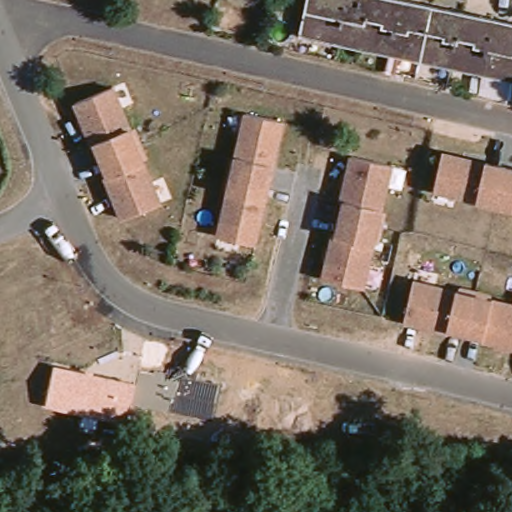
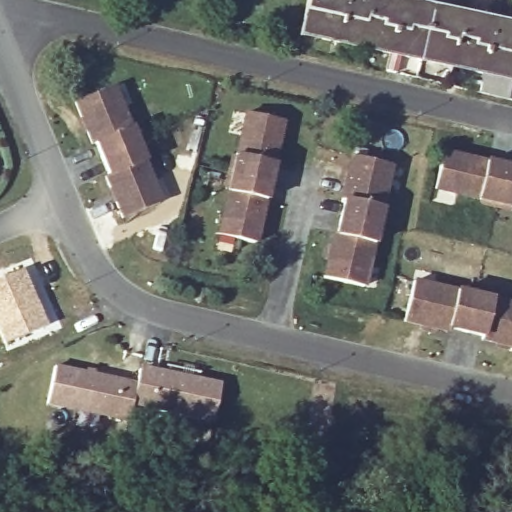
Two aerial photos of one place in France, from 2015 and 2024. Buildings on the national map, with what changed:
unchanged [(303,0),(343,0),(333,44),(296,36),(303,0)]
unchanged [(333,44),(343,0),(366,0),(355,49),(333,44)]
unchanged [(355,49),(366,0),(389,0),(396,1),(385,55),(355,49)]
unchanged [(396,1),(426,8),(415,61),(385,55),(396,1)]
unchanged [(415,61),(426,8),(458,15),(447,67),(415,61)]
unchanged [(478,74),(447,67),(458,15),(489,20),(478,74)]
unchanged [(489,20),(512,25),(512,80),(478,74),(489,20)]
unchanged [(97,139),(94,140),(77,99),(114,83),(138,140),(104,155),(97,139)]
unchanged [(246,110),(277,116),(283,118),(277,144),(269,179),(233,170),(246,110)]
unchanged [(107,172),(110,170),(104,155),(138,140),(162,197),(124,212),(107,172)]
unchanged [(433,185),(440,155),(441,150),(470,155),(503,163),(495,199),(433,185)]
unchanged [(378,223),(341,214),(345,197),(341,196),(352,152),(392,162),(378,223)]
unchanged [(512,203),(495,199),(503,163),(512,165),(512,203)]
unchanged [(250,237),(219,230),(233,170),(269,179),(262,212),(255,239),(250,237)]
unchanged [(362,282),(323,273),(334,230),(337,230),(341,214),(378,223),(362,282)]
new [(24,269),(50,323),(5,345),(0,335),(0,279),(24,269)]
unchanged [(448,328),(447,332),(405,321),(413,281),(473,295),(465,331),(448,328)]
unchanged [(512,347),(481,339),(482,336),(465,331),(473,295),(512,305),(512,347)]
unchanged [(135,382),(127,420),(45,405),(54,365),(135,382)]
unchanged [(130,406),(135,382),(138,365),(219,381),(210,423),(130,406)]

